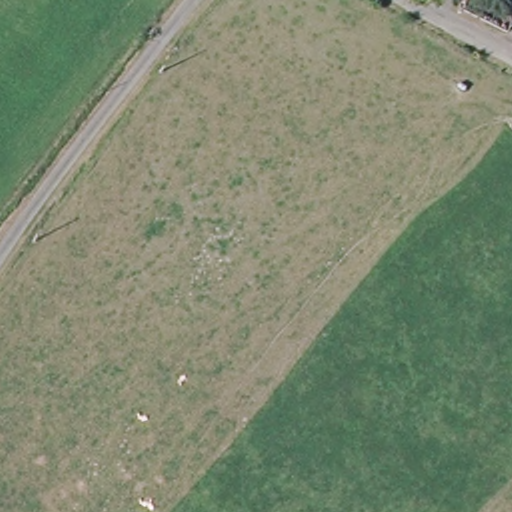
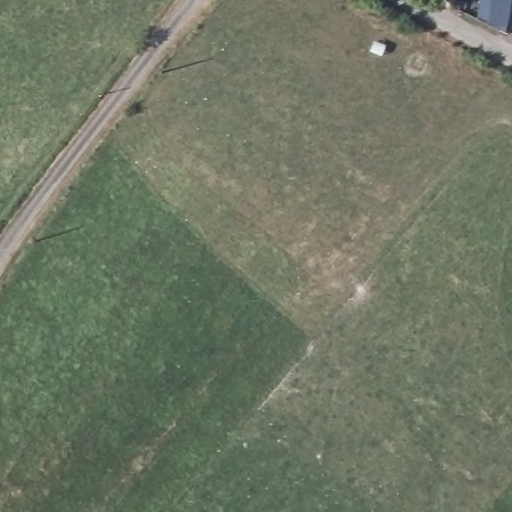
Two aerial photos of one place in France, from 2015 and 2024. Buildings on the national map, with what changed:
new [(512,5),(508,29),(480,16),(482,0),(512,0),(512,5)]

